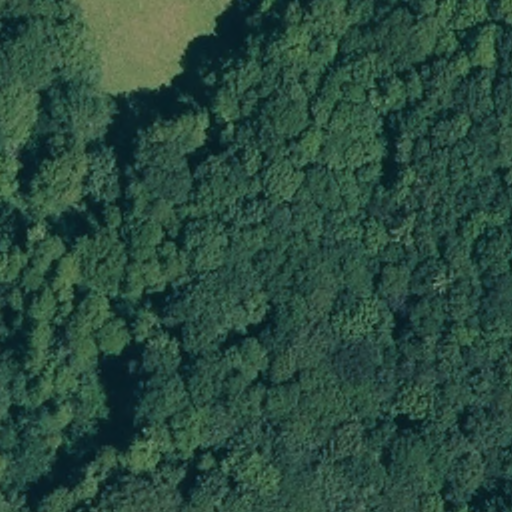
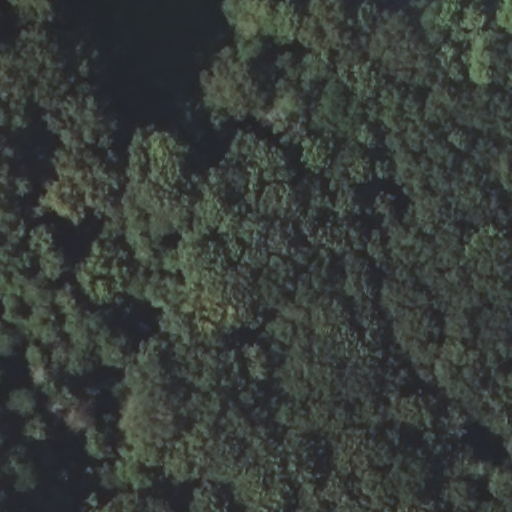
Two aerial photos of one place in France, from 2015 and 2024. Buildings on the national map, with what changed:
[]

